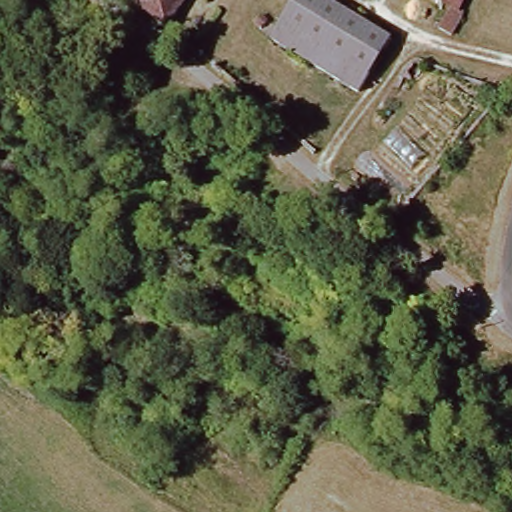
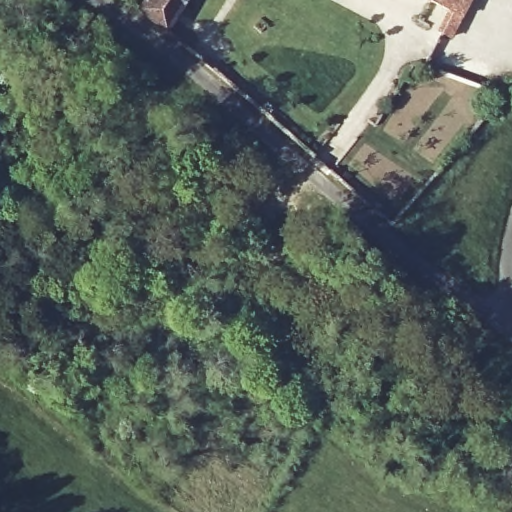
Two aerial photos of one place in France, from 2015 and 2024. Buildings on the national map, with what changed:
unchanged [(189,0),(169,27),(144,7),(149,0),(189,0)]
demolished [(363,97),(262,28),(269,17),(281,25),(299,0),(331,0),(398,46),(363,97)]
unchanged [(469,14),(458,34),(444,29),(454,10),(434,0),(468,0),(464,7),(469,14)]

